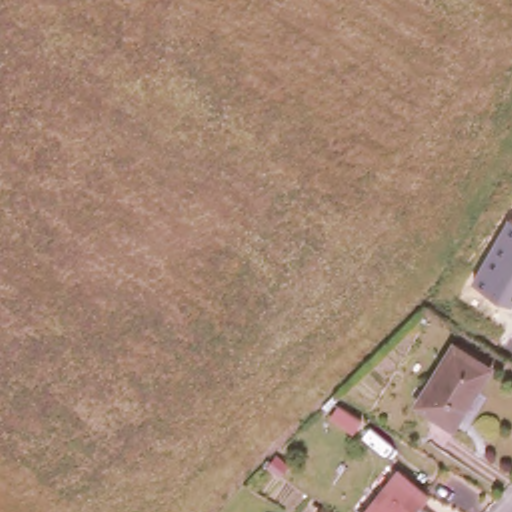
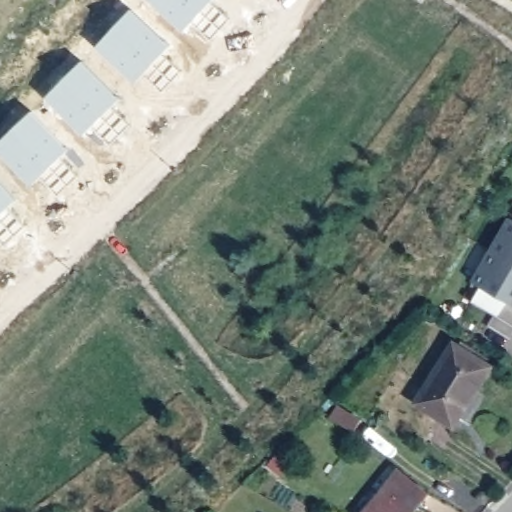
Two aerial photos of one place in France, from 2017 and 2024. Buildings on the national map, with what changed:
new [(213,1),(230,18),(211,39),(193,22),(184,31),(150,0),(213,0),(213,1)]
new [(172,45),(164,53),(182,71),(163,91),(146,74),(136,84),(98,46),(132,9),(172,45)]
new [(122,98),(114,106),(130,124),(110,144),(93,126),(83,136),(46,97),(83,60),(122,98)]
new [(70,149),(62,156),(78,175),(58,195),(42,176),(31,186),(0,152),(0,141),(33,111),(70,149)]
new [(18,199),(10,206),(25,224),(4,245),(0,240),(0,179),(18,199)]
unchanged [(508,217),(512,219),(512,305),(472,282),(508,217)]
unchanged [(450,342),(487,366),(449,425),(412,400),(450,342)]
unchanged [(361,417),(354,429),(330,417),(337,404),(361,417)]
unchanged [(369,512),(401,469),(432,491),(416,512),(369,512)]

